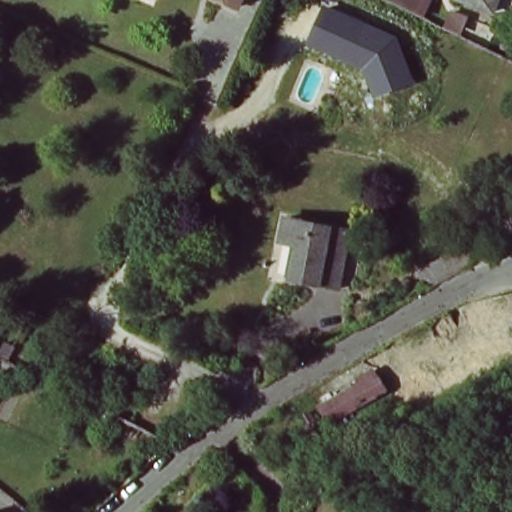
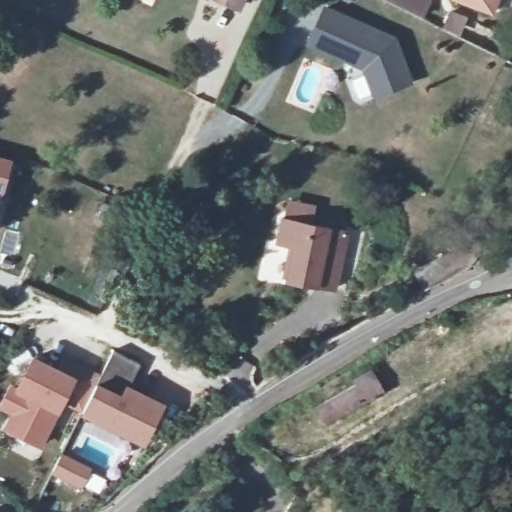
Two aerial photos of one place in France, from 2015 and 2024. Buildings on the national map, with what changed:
unchanged [(224,0),(241,0),(238,6),(224,0)]
unchanged [(454,32),(443,27),(441,31),(393,8),(388,6),(376,0),(396,0),(427,0),(449,11),(450,12),(461,16),(454,32)]
unchanged [(461,0),(496,0),(492,11),(461,0)]
unchanged [(321,3),(379,30),(399,75),(364,90),(351,60),(305,39),(321,3)]
new [(13,160),(1,205),(0,205),(0,157),(13,160)]
unchanged [(288,217),(336,227),(351,231),(339,289),(324,286),(293,280),(300,245),(283,241),(288,217)]
unchanged [(470,262),(467,265),(423,290),(414,273),(470,242),(478,239),(482,245),(480,247),(470,262)]
unchanged [(3,342),(12,347),(6,360),(0,358),(0,347),(3,342)]
new [(10,415),(0,409),(0,405),(10,385),(16,388),(33,355),(56,366),(62,354),(102,375),(113,353),(140,366),(129,385),(167,405),(148,447),(81,414),(82,410),(66,401),(60,412),(43,447),(2,427),(10,415)]
unchanged [(326,423),(317,407),(356,385),(353,380),(372,370),(377,378),(384,390),(326,423)]
unchanged [(314,420),(301,427),(296,417),(307,410),(314,420)]
demolished [(119,418),(130,423),(124,435),(114,429),(119,418)]

